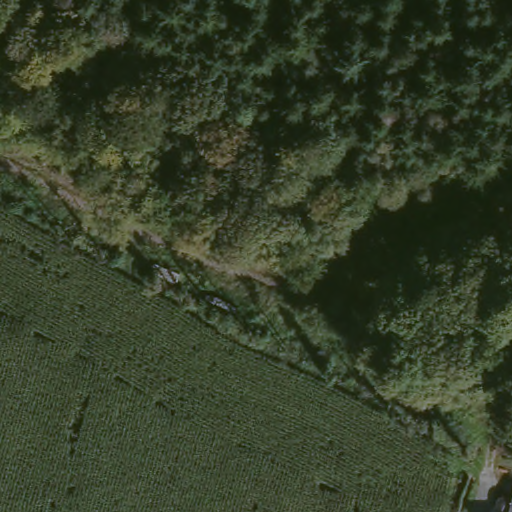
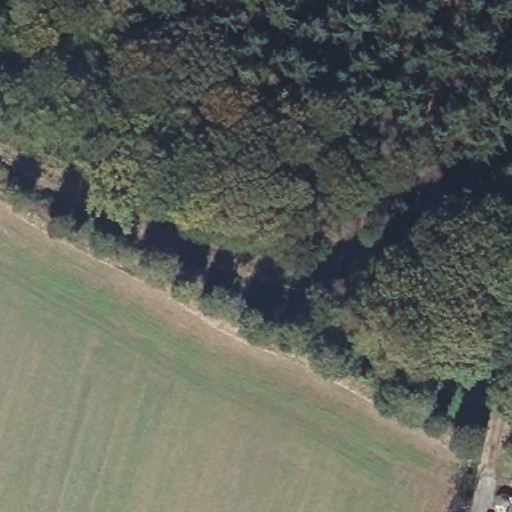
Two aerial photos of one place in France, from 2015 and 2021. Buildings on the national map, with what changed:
unchanged [(512,492),(512,503),(508,502),(512,492)]
unchanged [(512,503),(512,512),(506,512),(508,502),(512,503)]

